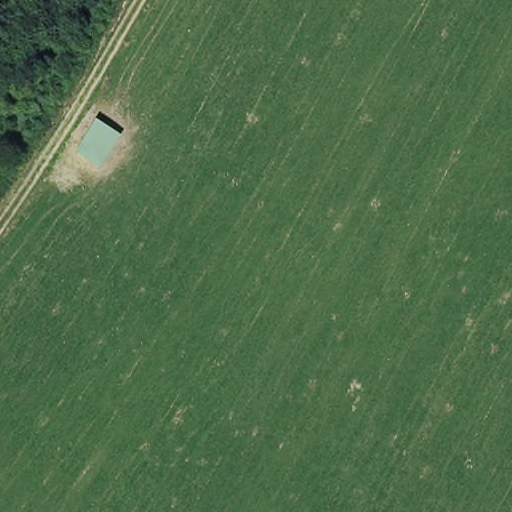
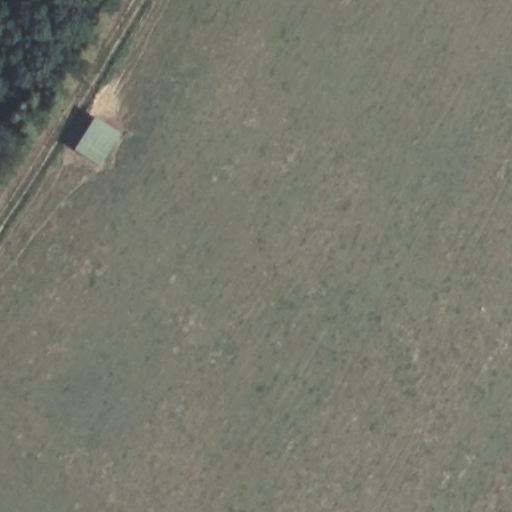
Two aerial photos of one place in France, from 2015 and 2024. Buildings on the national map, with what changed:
unchanged [(102,170),(76,157),(95,121),(124,136),(102,170)]

